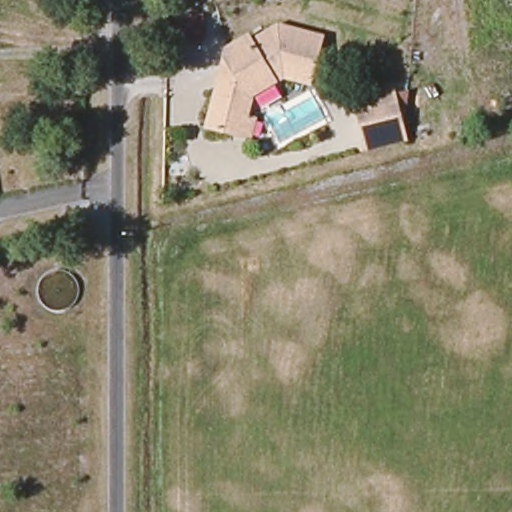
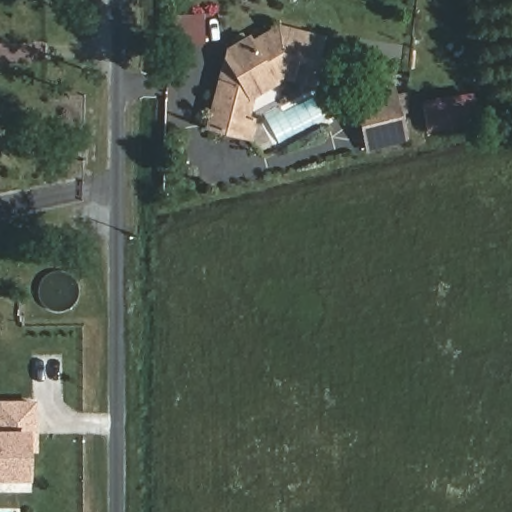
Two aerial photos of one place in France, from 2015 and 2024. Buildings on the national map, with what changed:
unchanged [(281,85),(255,93),(246,118),(257,119),(253,145),(206,132),(218,76),(218,47),(277,23),(325,35),(309,91),(281,85)]
unchanged [(355,91),(392,84),(408,141),(367,150),(355,91)]
new [(28,450),(26,480),(0,479),(0,397),(36,397),(38,450),(28,450)]

